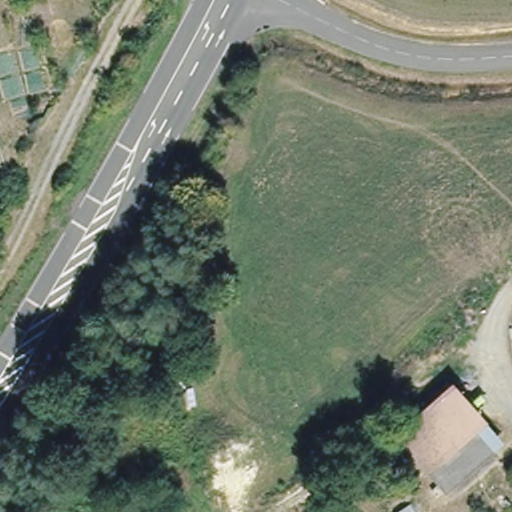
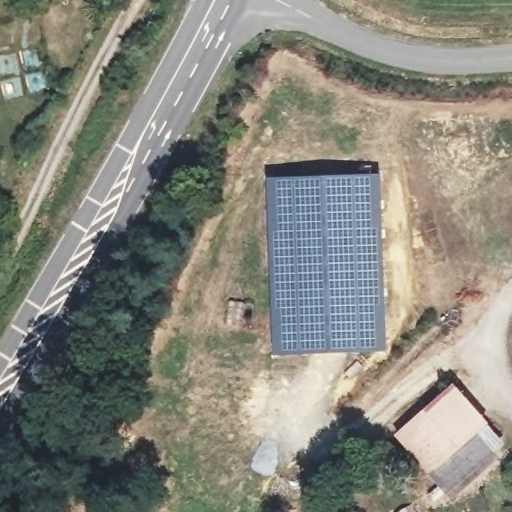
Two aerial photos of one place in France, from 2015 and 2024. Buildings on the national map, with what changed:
new [(381,176),(387,351),(277,355),(270,180),(381,176)]
unchanged [(445,496),(423,468),(391,431),(449,378),(484,418),(500,438),(491,447),(495,453),(445,496)]

